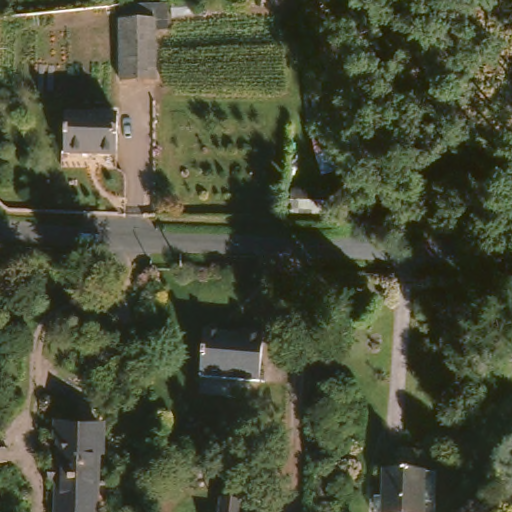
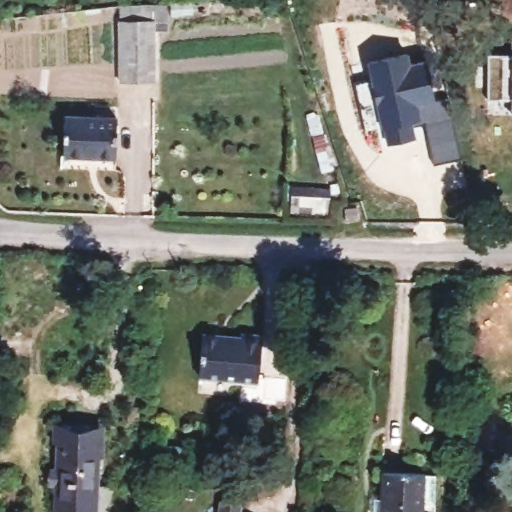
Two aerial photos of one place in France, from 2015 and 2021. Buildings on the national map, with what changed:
unchanged [(115,22),(150,21),(152,81),(117,82),(115,22)]
new [(510,119),(511,99),(486,101),(488,55),(511,54),(512,31),(512,119),(510,119)]
new [(434,167),(425,126),(412,129),(413,138),(387,144),(383,126),(365,130),(355,84),(370,79),(368,65),(407,55),(410,65),(426,62),(435,103),(450,100),(461,159),(434,167)]
unchanged [(115,109),(114,159),(61,157),(62,107),(115,109)]
new [(310,139),(305,114),(320,111),(323,133),(326,132),(339,170),(321,174),(310,139)]
new [(332,188),(345,185),(346,198),(331,201),(328,217),(291,215),(293,186),(332,188)]
demolished [(297,197),(310,198),(311,209),(297,208),(297,197)]
unchanged [(193,379),(197,336),(235,340),(235,335),(257,338),(252,385),(193,379)]
unchanged [(97,424),(94,512),(54,512),(58,423),(97,424)]
unchanged [(426,476),(423,512),(382,512),(385,472),(426,476)]
unchanged [(220,493),(244,495),(243,512),(219,512),(220,493)]

